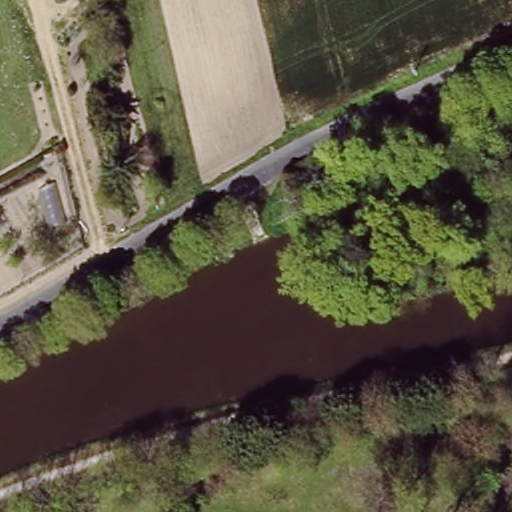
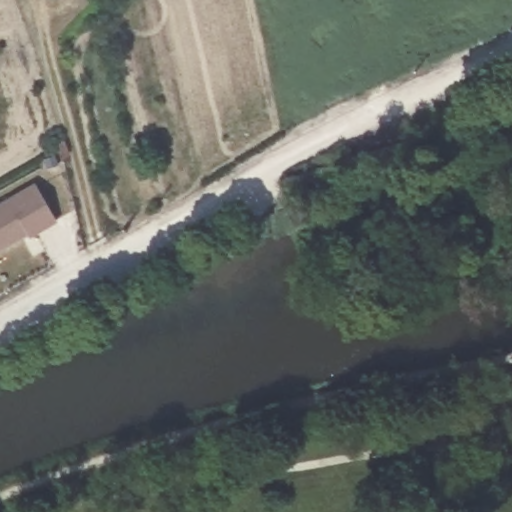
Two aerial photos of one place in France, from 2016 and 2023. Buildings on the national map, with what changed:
unchanged [(294,169),(300,181),(286,188),(281,175),(294,169)]
new [(27,238),(25,234),(0,248),(0,203),(34,184),(57,221),(27,238)]

